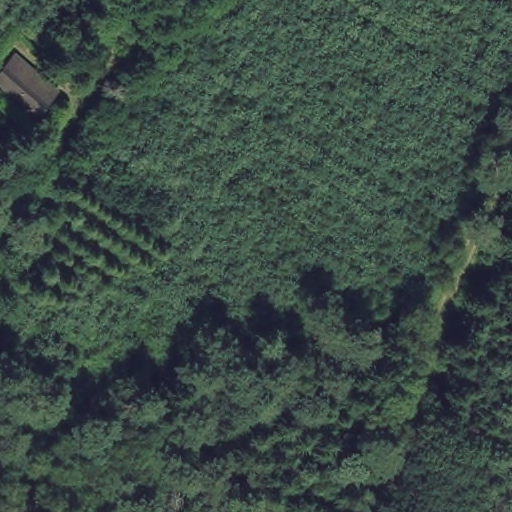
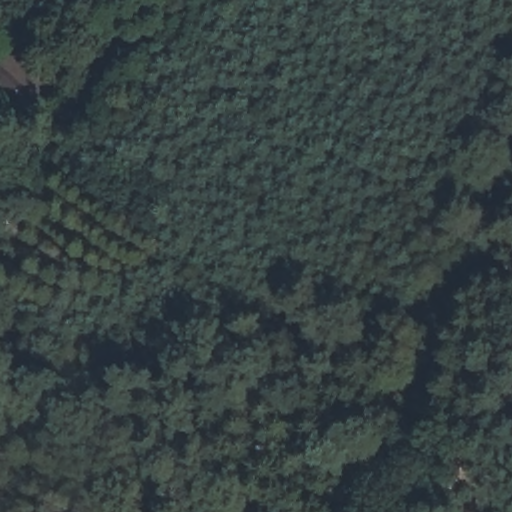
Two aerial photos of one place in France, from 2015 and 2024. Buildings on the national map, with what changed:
unchanged [(11,58),(55,95),(33,123),(0,96),(0,72),(11,58)]

